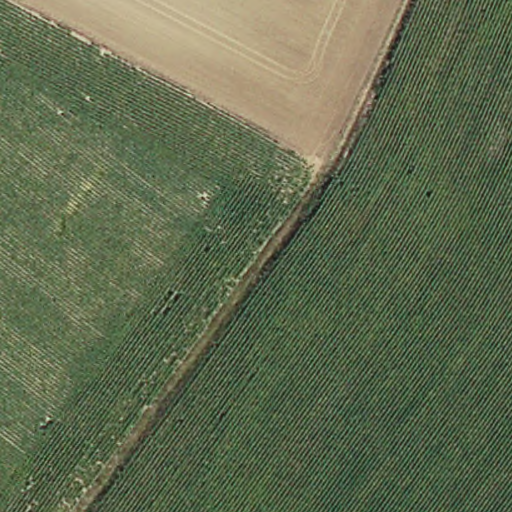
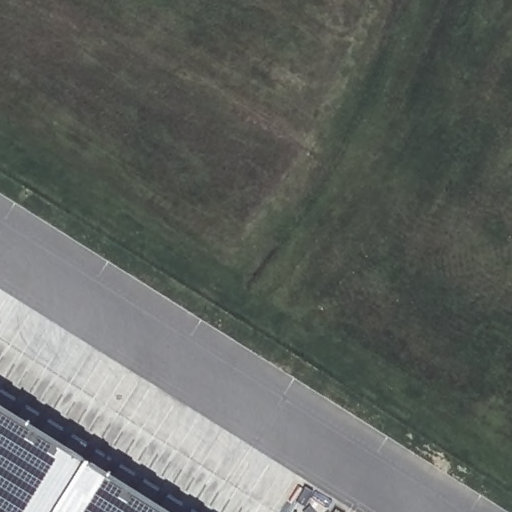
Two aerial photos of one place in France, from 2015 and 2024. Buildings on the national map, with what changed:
new [(0,406),(169,512),(0,512),(0,406)]

